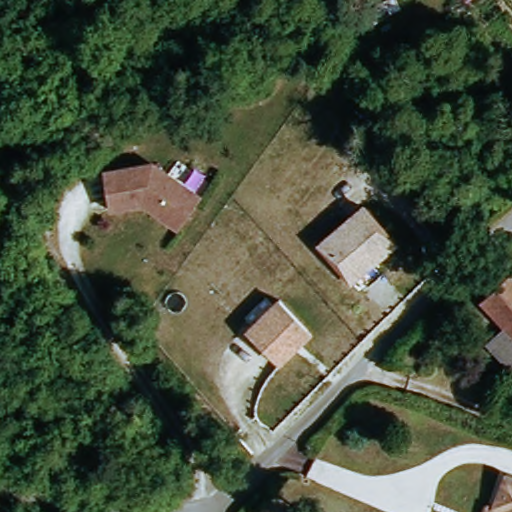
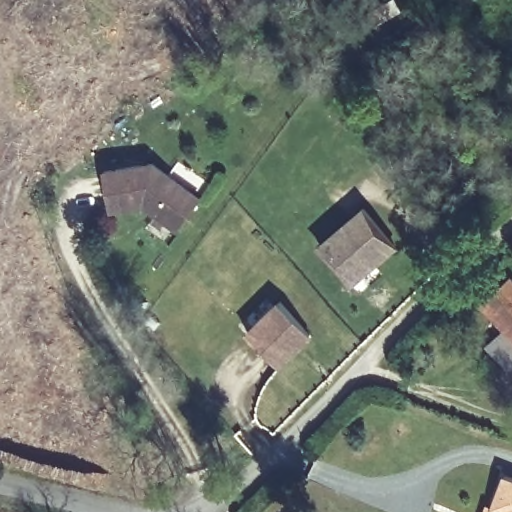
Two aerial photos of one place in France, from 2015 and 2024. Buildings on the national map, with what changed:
unchanged [(201,195),(178,226),(143,201),(110,206),(104,168),(153,161),(201,195)]
unchanged [(341,281),(319,254),(363,216),(394,253),(356,286),(350,291),(341,281)]
unchanged [(512,282),(512,343),(480,312),(512,282)]
unchanged [(309,335),(276,367),(246,336),(279,304),(301,327),(309,335)]
unchanged [(512,343),(512,381),(503,373),(491,362),(512,343)]
unchanged [(499,477),(512,480),(512,512),(492,512),(487,510),(499,477)]

